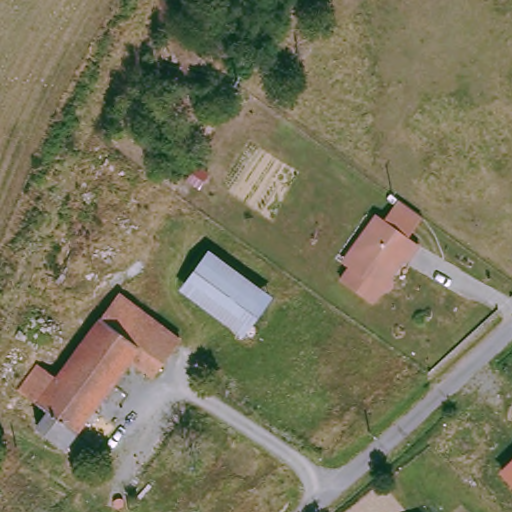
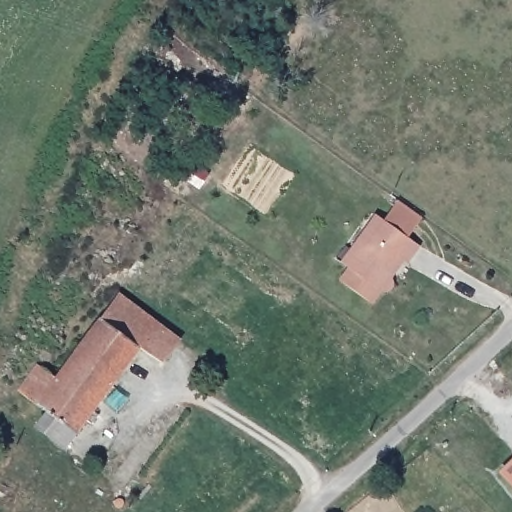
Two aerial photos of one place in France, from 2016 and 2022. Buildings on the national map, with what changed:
unchanged [(408,259),(405,257),(393,273),(394,274),(395,279),(394,282),(391,285),(387,287),(384,287),(382,287),(373,300),(338,274),(348,261),(340,257),(375,208),(389,218),(402,199),(404,201),(421,213),(408,232),(421,241),(408,259)]
demolished [(208,249),(272,296),(243,337),(178,290),(208,249)]
unchanged [(65,450),(34,426),(44,410),(17,390),(36,363),(54,377),(98,319),(99,320),(120,291),(181,337),(151,377),(131,363),(65,450)]
unchanged [(26,446),(41,454),(35,465),(21,458),(26,446)]
unchanged [(512,459),(512,488),(499,472),(512,459)]
unchanged [(232,512),(256,492),(277,512),(232,512)]

